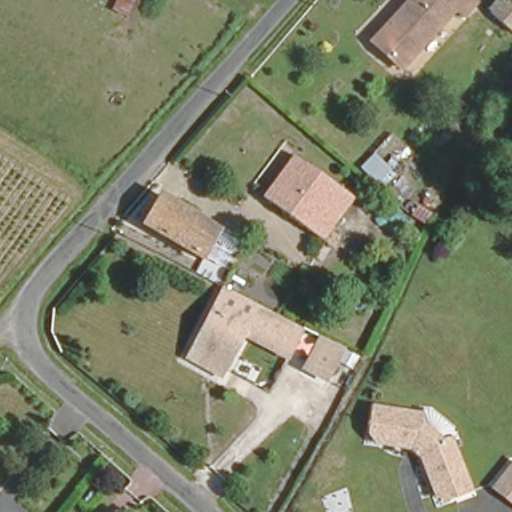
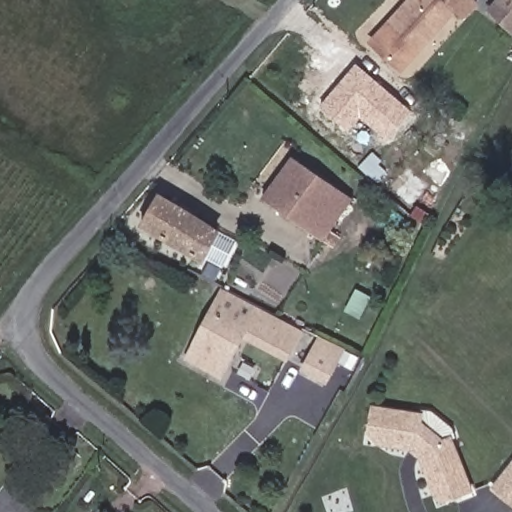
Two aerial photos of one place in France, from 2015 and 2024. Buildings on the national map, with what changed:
unchanged [(464,19),(460,17),(446,32),(439,25),(401,67),(373,42),(412,0),(479,0),(480,1),(464,19)]
unchanged [(496,0),(512,0),(512,34),(485,11),(496,0)]
new [(356,62),(413,111),(387,139),(361,117),(349,130),(320,106),(356,62)]
unchanged [(260,198),(289,156),(334,187),(350,198),(328,240),(260,198)]
unchanged [(195,257),(140,231),(155,202),(210,229),(195,257)]
unchanged [(314,361),(269,340),(245,386),(180,356),(216,284),(283,316),(326,336),(314,361)]
unchanged [(415,408),(421,406),(447,428),(445,439),(464,487),(432,498),(410,450),(401,442),(357,436),(364,402),(415,408)]
unchanged [(512,464),(512,507),(488,487),(508,461),(512,464)]

